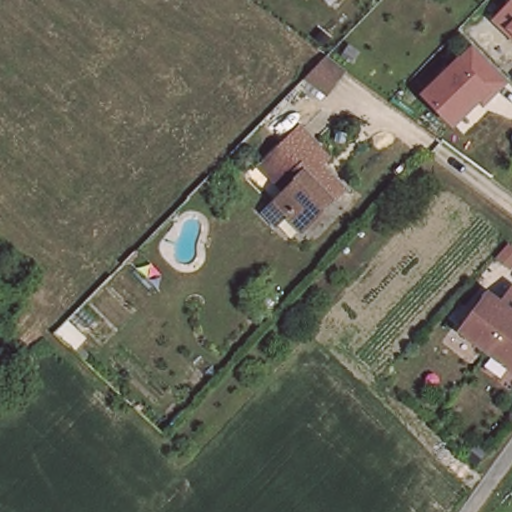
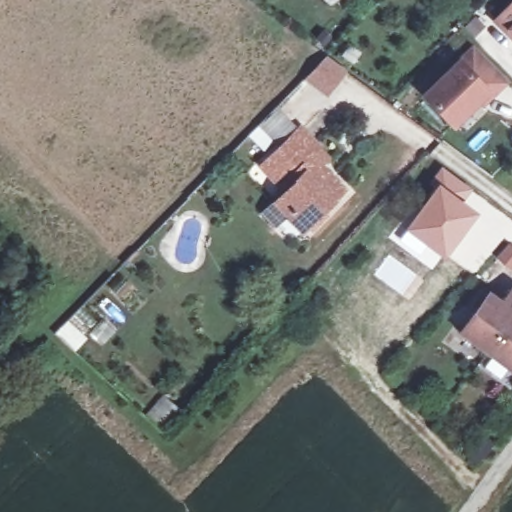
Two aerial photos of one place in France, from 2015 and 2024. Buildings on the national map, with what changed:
unchanged [(492,21),(512,0),(512,40),(492,21)]
unchanged [(484,108),(479,102),(454,127),(422,94),(471,45),(509,82),(484,108)]
unchanged [(304,72),(320,56),(339,70),(321,89),(304,72)]
demolished [(488,171),(459,150),(487,126),(512,145),(512,149),(488,171)]
unchanged [(257,226),(278,203),(282,199),(273,188),(282,178),(266,164),(294,133),(314,150),(306,159),(346,196),(304,240),(286,222),(271,239),(257,226)]
new [(438,181),(432,176),(442,165),(473,189),(464,200),(479,210),(441,258),(403,230),(438,181)]
unchanged [(486,291),(499,301),(512,285),(512,286),(512,367),(486,348),(459,327),(486,291)]

